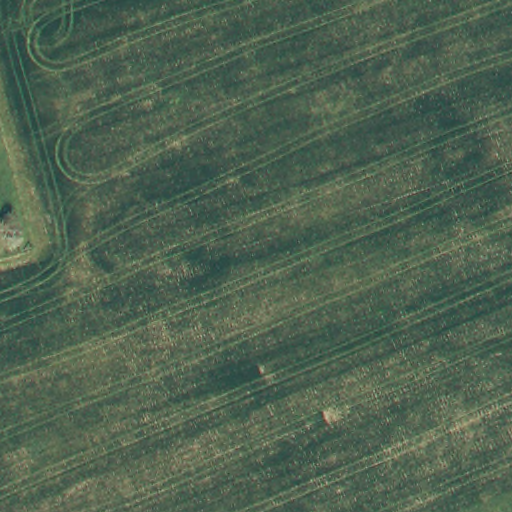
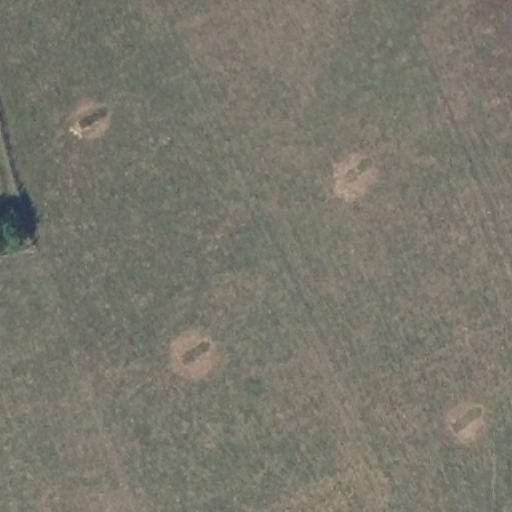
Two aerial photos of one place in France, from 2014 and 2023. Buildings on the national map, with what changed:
[]

